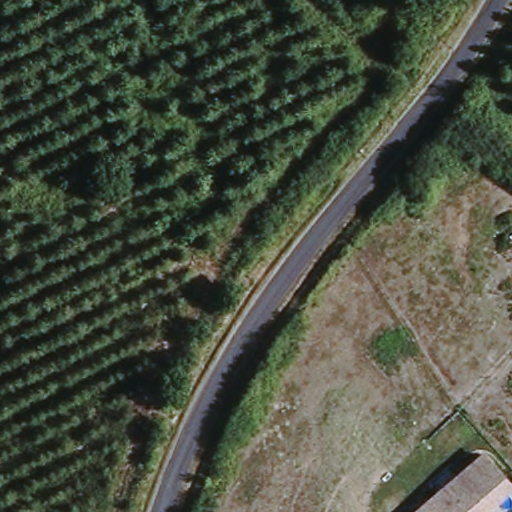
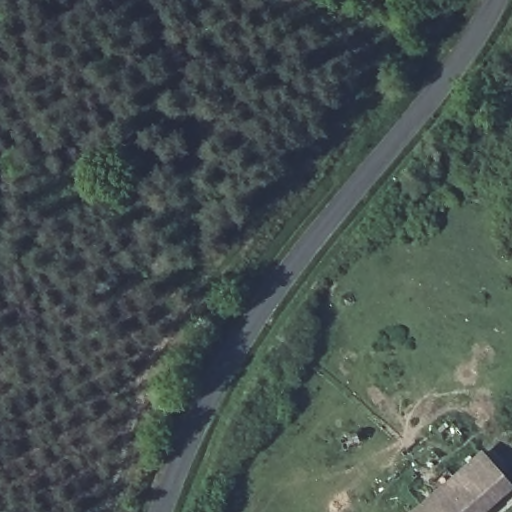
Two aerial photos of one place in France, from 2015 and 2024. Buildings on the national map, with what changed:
unchanged [(475,452),(504,485),(473,512),(408,512),(475,452)]

